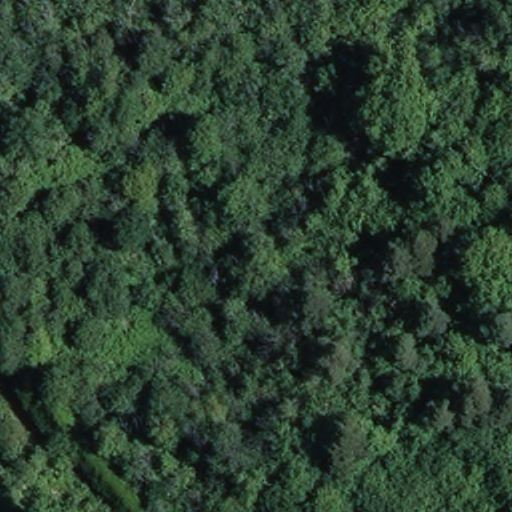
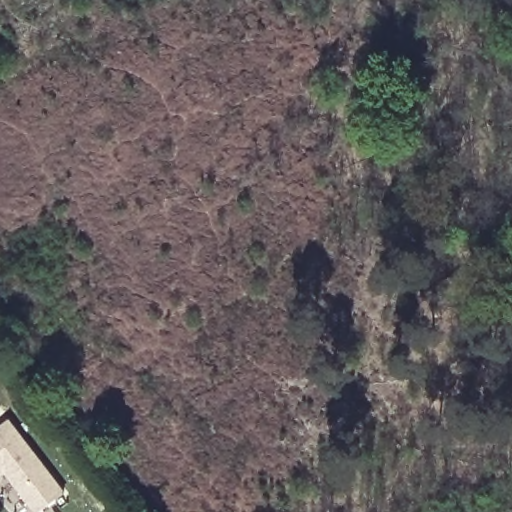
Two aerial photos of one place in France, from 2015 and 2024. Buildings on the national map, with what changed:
new [(64,493),(39,512),(36,512),(5,472),(0,476),(0,429),(10,421),(64,493)]

